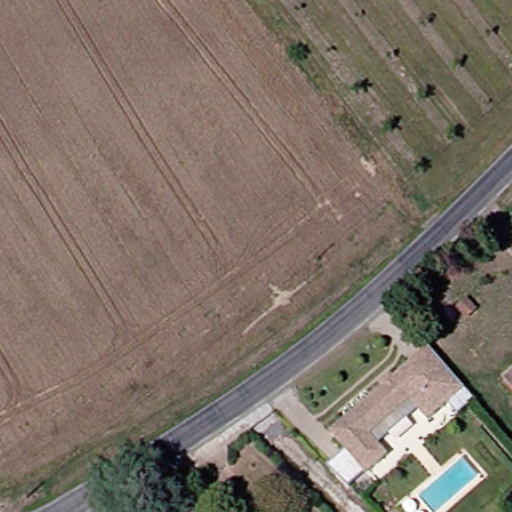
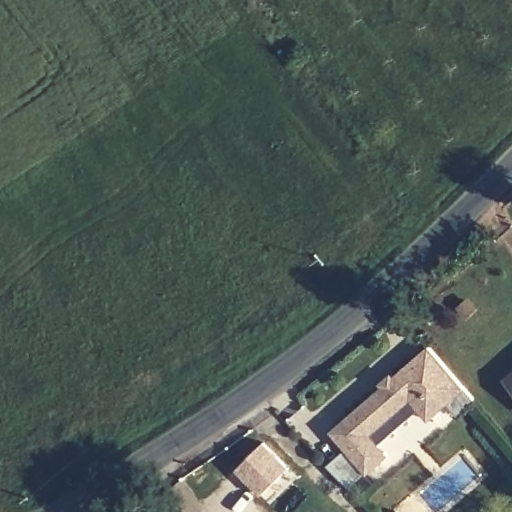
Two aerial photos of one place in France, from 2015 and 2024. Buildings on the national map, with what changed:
unchanged [(468,293),(478,305),(466,315),(456,304),(468,293)]
unchanged [(388,456),(367,474),(332,432),(430,347),(466,389),(429,421),(419,410),(378,445),(388,456)]
unchanged [(512,374),(512,390),(504,381),(512,374)]
new [(261,441),(286,466),(259,495),(234,470),(261,441)]
unchanged [(398,506),(403,512),(391,512),(398,506)]

